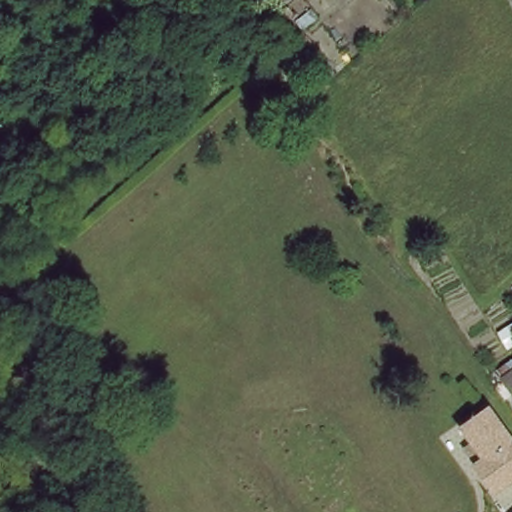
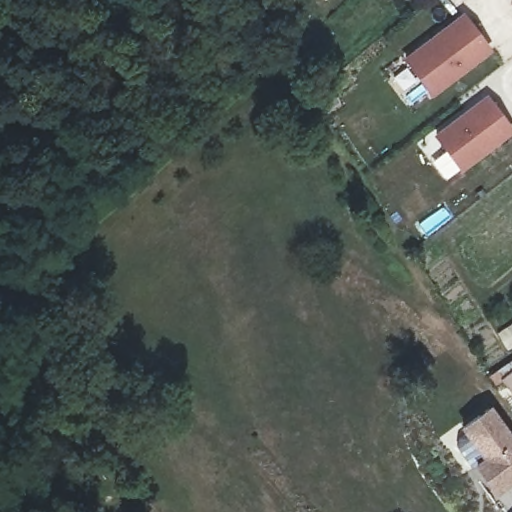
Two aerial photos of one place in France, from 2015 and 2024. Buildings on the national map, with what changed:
unchanged [(281,13),(272,0),(300,0),(281,13)]
new [(431,96),(402,58),(462,11),(491,49),(431,96)]
new [(460,171),(432,135),(485,95),(512,129),(512,131),(460,171)]
unchanged [(504,383),(512,377),(512,394),(504,383)]
unchanged [(492,493),(477,471),(487,462),(461,430),(485,409),(512,439),(512,475),(492,493)]
unchanged [(482,508),(477,501),(485,493),(492,501),(482,508)]

